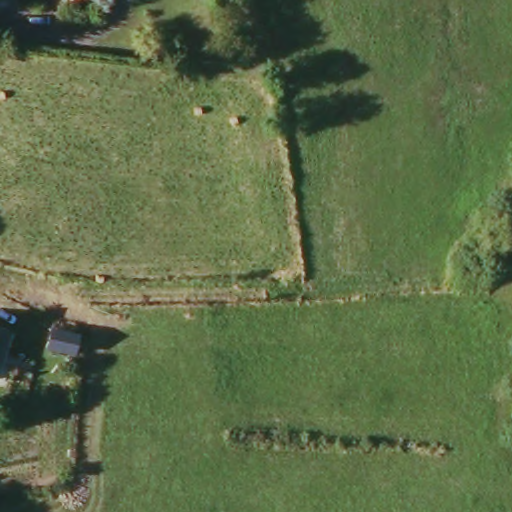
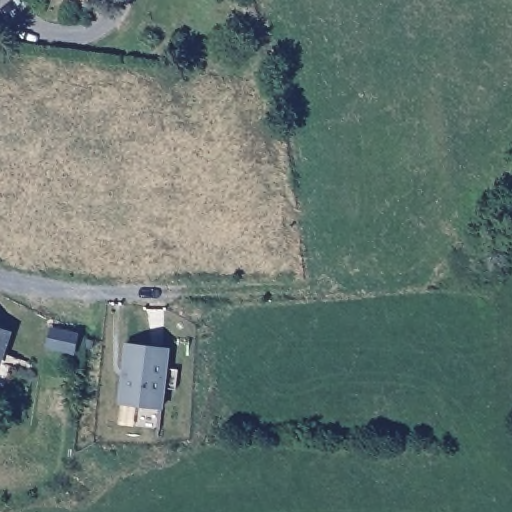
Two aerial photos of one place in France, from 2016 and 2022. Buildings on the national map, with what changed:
new [(76,337),(70,356),(47,350),(52,330),(76,337)]
unchanged [(1,355),(0,358),(0,332),(8,334),(1,355)]
new [(120,402),(126,343),(167,347),(160,407),(120,402)]

